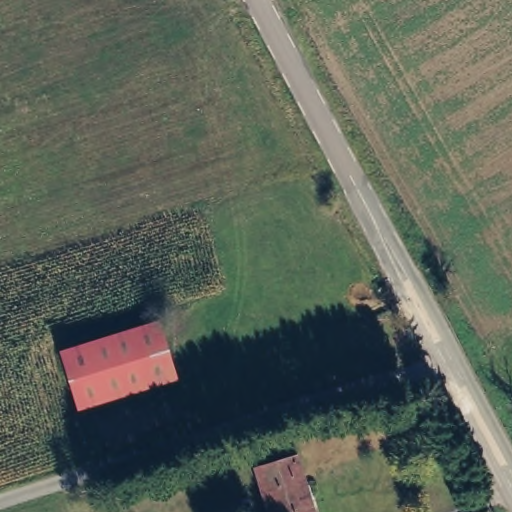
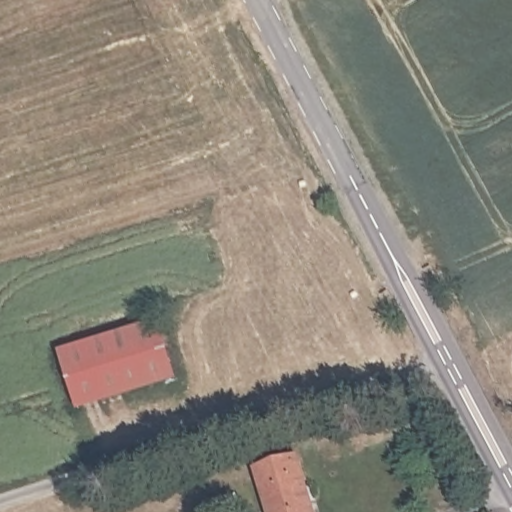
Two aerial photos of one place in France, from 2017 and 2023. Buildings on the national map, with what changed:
unchanged [(66,351),(159,321),(178,380),(85,407),(66,351)]
unchanged [(311,512),(268,512),(257,476),(296,465),(311,512)]

